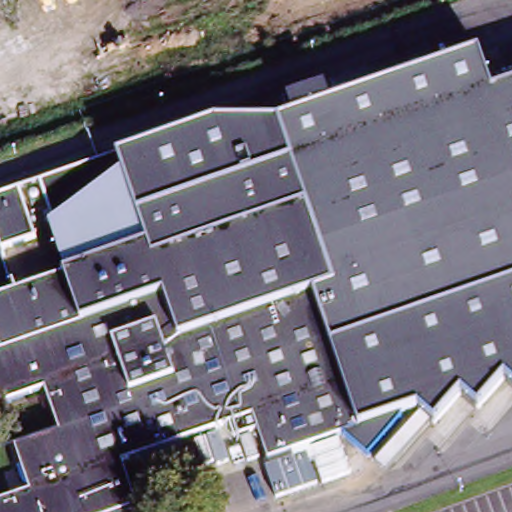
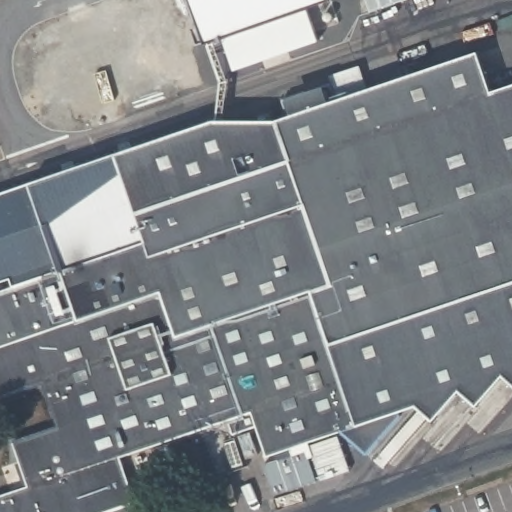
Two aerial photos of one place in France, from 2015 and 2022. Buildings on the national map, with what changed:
new [(320,34),(236,64),(224,29),(209,34),(197,0),(308,0),(320,34)]
unchanged [(512,373),(486,403),(468,388),(442,418),(425,403),(406,410),(407,414),(371,456),(343,431),(270,457),(255,415),(122,462),(138,512),(0,512),(0,504),(32,493),(28,479),(17,448),(59,434),(45,393),(2,407),(0,400),(0,293),(62,272),(47,226),(54,221),(41,183),(116,155),(215,122),(277,124),(477,53),(491,94),(512,86),(512,373)]
unchanged [(34,238),(1,250),(0,248),(0,193),(17,188),(34,238)]

